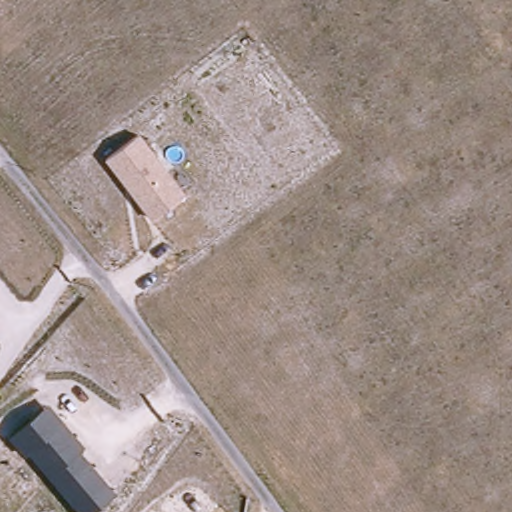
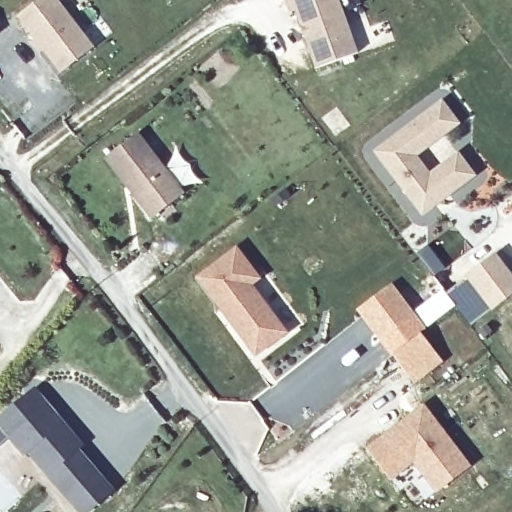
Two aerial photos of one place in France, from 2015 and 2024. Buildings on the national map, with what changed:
new [(61,72),(45,52),(41,55),(30,42),(34,40),(17,17),(39,0),(59,0),(94,46),(61,72)]
new [(296,13),(291,15),(285,0),(340,0),(358,54),(317,70),(296,13)]
new [(442,102),(458,122),(415,155),(430,175),(458,154),(474,175),(423,213),(376,151),(442,102)]
unchanged [(186,194),(152,220),(106,159),(138,135),(186,194)]
new [(256,355),(199,278),(239,250),(258,280),(250,285),(286,333),(256,355)]
new [(512,275),(512,296),(497,307),(471,273),(496,254),(512,275)]
new [(393,284),(416,315),(384,338),(361,307),(393,284)]
new [(423,332),(444,360),(416,381),(395,353),(423,332)]
unchanged [(90,512),(81,512),(30,451),(25,454),(13,437),(51,405),(86,446),(81,450),(117,491),(90,512)]
new [(409,417),(425,405),(470,465),(438,490),(415,459),(392,476),(370,446),(394,428),(409,417)]

